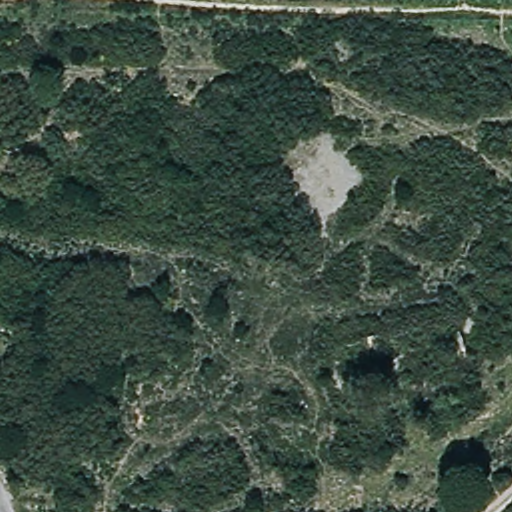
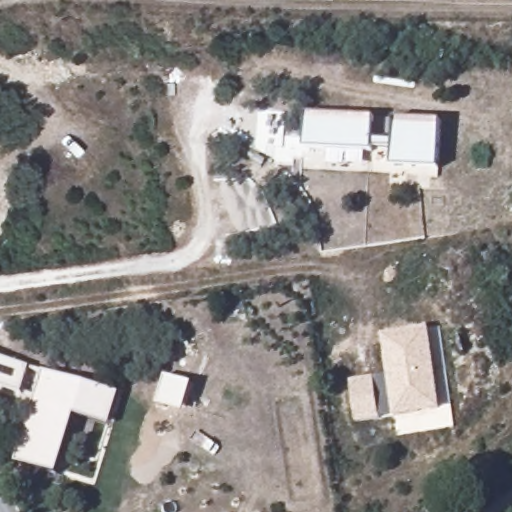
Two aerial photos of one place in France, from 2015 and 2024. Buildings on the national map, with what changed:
new [(305,115),(373,119),(372,152),(303,149),(305,115)]
new [(393,120),(439,122),(438,146),(437,170),(390,167),(393,120)]
new [(355,422),(349,379),(387,374),(381,333),(428,326),(440,410),(355,422)]
new [(21,396),(0,389),(0,360),(30,370),(21,396)]
new [(46,377),(122,402),(113,428),(80,417),(59,481),(16,467),(19,461),(46,377)]

